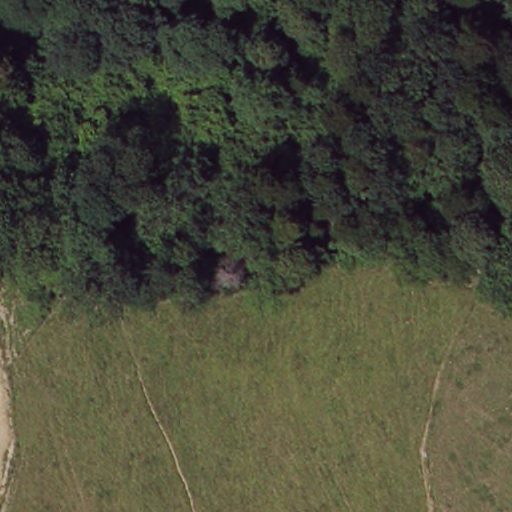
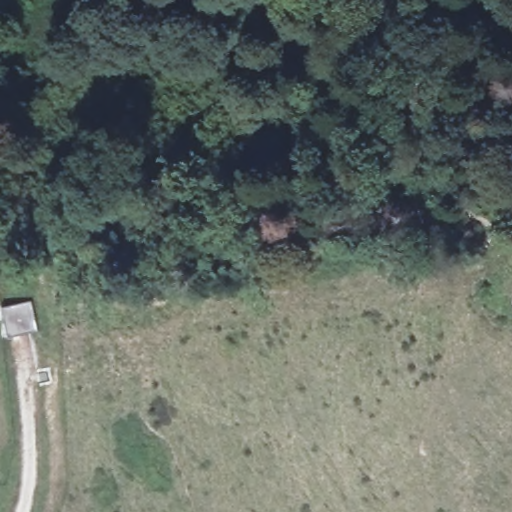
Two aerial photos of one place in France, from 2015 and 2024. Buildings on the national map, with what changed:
new [(1,307),(30,300),(37,331),(8,338),(1,307)]

